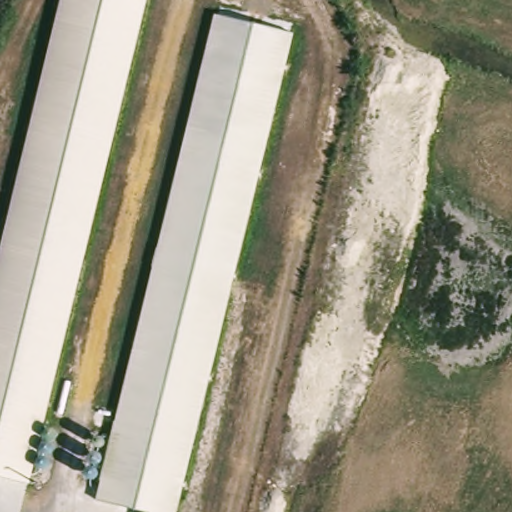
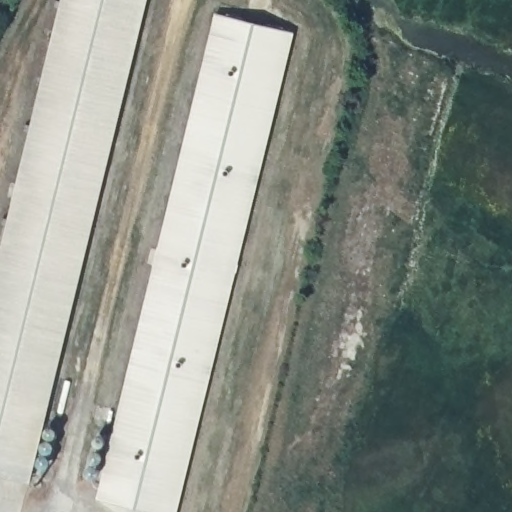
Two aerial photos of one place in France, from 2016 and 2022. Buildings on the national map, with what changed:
unchanged [(0,477),(0,244),(59,0),(146,0),(29,483),(0,477)]
unchanged [(297,37),(174,512),(138,512),(97,501),(221,17),(297,37)]

